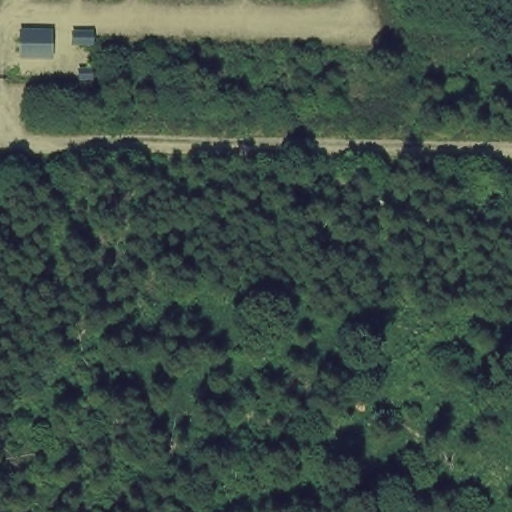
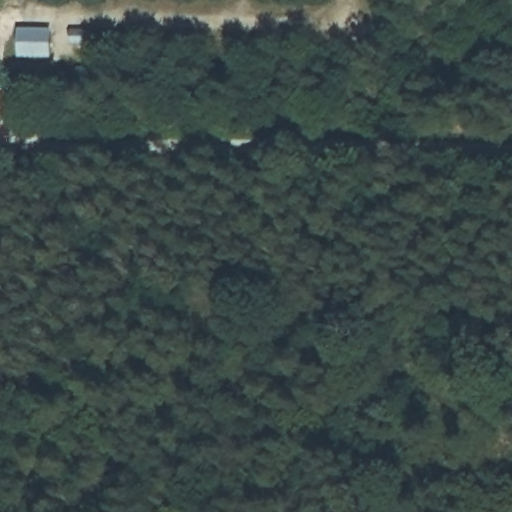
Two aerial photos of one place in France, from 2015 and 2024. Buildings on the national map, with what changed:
unchanged [(52,61),(17,61),(17,29),(55,29),(52,61)]

